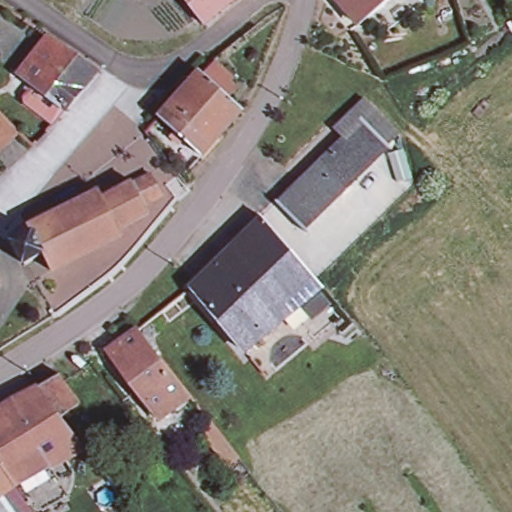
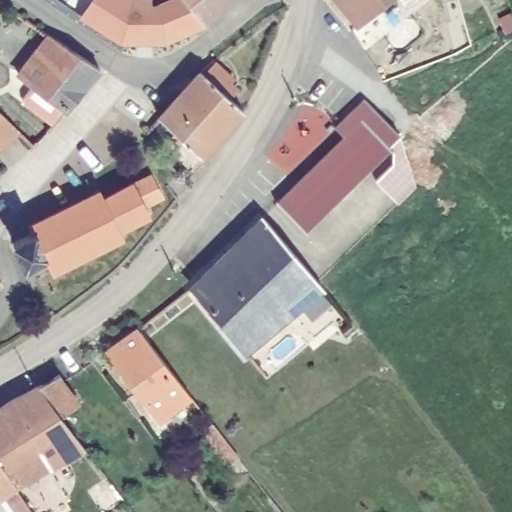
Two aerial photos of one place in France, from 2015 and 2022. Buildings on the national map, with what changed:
new [(195,24),(162,44),(121,44),(80,17),(92,0),(152,0),(152,4),(158,4),(167,0),(177,0),(195,24)]
unchanged [(195,24),(178,0),(224,0),(195,24)]
unchanged [(343,9),(342,7),(336,0),(353,0),(343,9)]
unchanged [(355,23),(343,9),(353,0),(383,0),(355,23)]
unchanged [(92,69),(59,109),(12,74),(42,35),(92,69)]
unchanged [(195,73),(202,65),(212,73),(209,77),(213,80),(208,85),(233,108),(192,155),(151,117),(192,70),(195,73)]
unchanged [(274,209),(268,203),(270,202),(272,204),(338,138),(329,129),(360,99),(388,131),(393,136),(392,137),(382,148),(383,149),(378,153),(297,233),(295,231),(274,209)]
unchanged [(18,128),(0,143),(0,110),(18,128)]
unchanged [(25,227),(92,192),(96,190),(100,197),(130,181),(130,184),(148,174),(158,194),(140,204),(145,212),(115,228),(118,235),(47,272),(38,255),(23,265),(21,267),(10,244),(28,234),(25,227)]
unchanged [(300,303),(295,296),(258,328),(204,263),(251,216),(309,284),(305,288),(310,295),(300,303)]
unchanged [(204,263),(258,328),(233,350),(181,286),(204,263)]
unchanged [(126,334),(177,400),(147,424),(98,355),(126,334)]
unchanged [(54,375),(76,404),(57,418),(80,448),(47,466),(8,400),(33,386),(54,375)]
unchanged [(21,512),(0,512),(0,405),(8,400),(47,466),(28,476),(10,487),(9,487),(25,509),(21,512)]
unchanged [(21,512),(25,509),(28,512),(21,512)]

